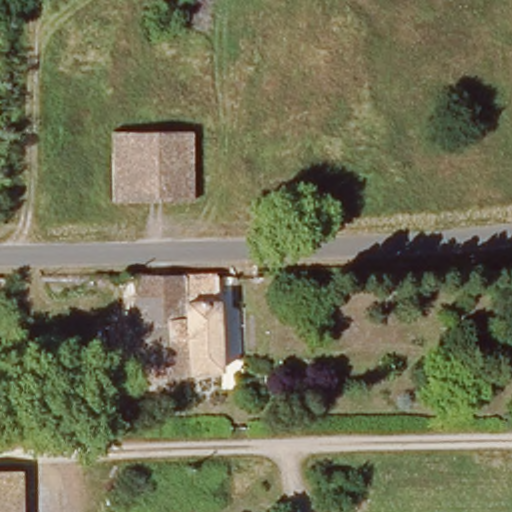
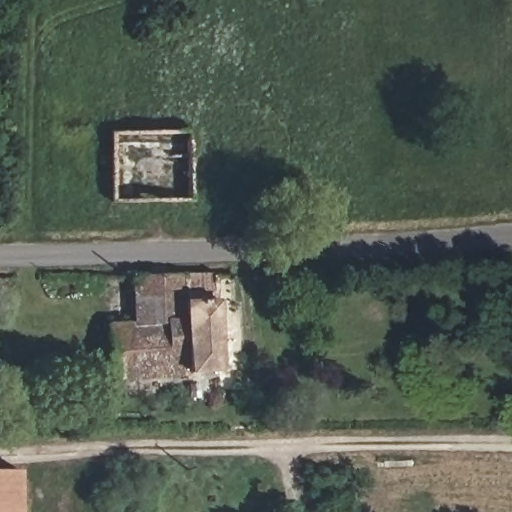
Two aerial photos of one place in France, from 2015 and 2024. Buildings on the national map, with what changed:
unchanged [(192,201),(112,201),(114,133),(191,132),(192,201)]
unchanged [(222,378),(90,386),(86,333),(141,330),(186,327),(182,280),(214,277),(222,378)]
unchanged [(186,327),(141,330),(140,280),(182,280),(186,327)]
unchanged [(25,472),(24,497),(24,512),(0,512),(0,472),(4,472),(25,472)]

